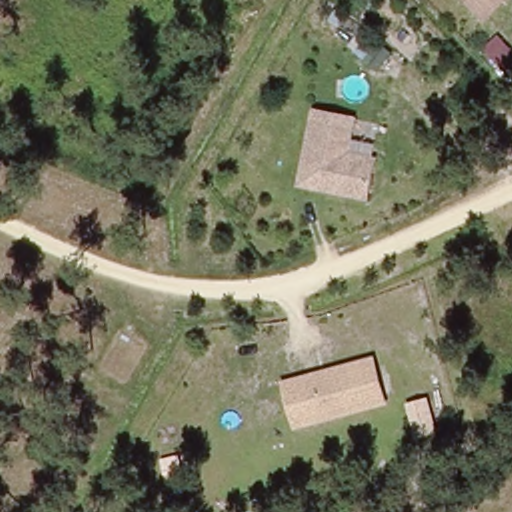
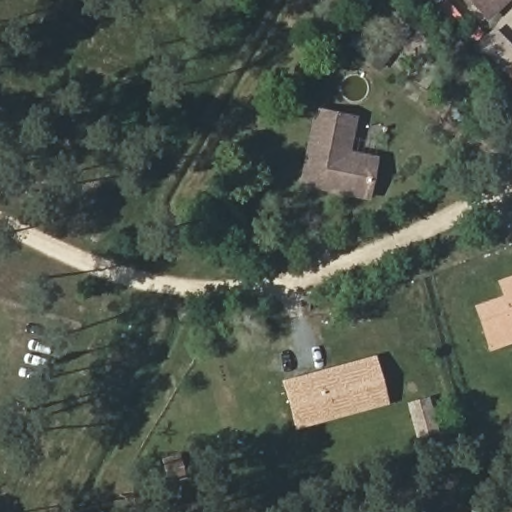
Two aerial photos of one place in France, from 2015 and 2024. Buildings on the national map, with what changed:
unchanged [(484,17),(469,0),(502,0),(484,17)]
new [(477,44),(495,27),(512,45),(512,82),(477,44)]
unchanged [(353,121),(347,157),(374,162),(367,199),(302,187),(315,114),(353,121)]
new [(502,296),(497,281),(512,276),(512,344),(489,352),(473,306),(502,296)]
unchanged [(390,403),(294,432),(282,382),(376,356),(390,403)]

